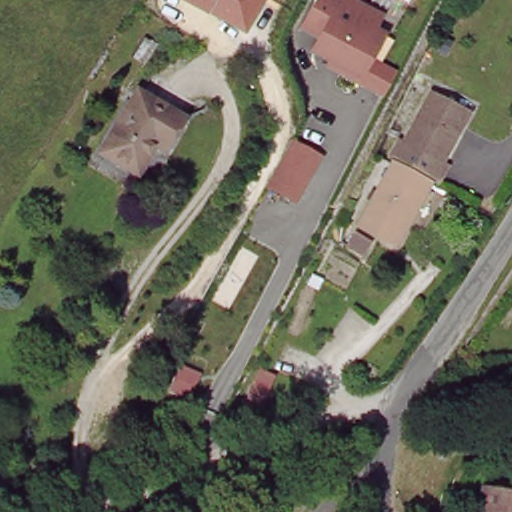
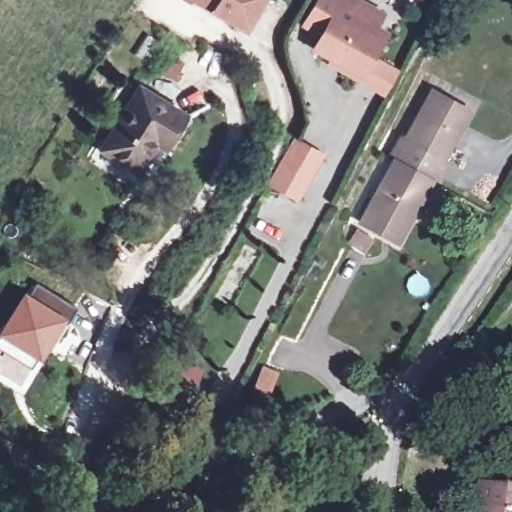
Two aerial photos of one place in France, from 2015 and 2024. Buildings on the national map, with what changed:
unchanged [(182,0),(263,0),(245,34),(182,0)]
unchanged [(364,79),(312,54),(317,39),(300,31),(312,0),(345,0),(393,19),(364,79)]
unchanged [(427,87),(465,107),(440,156),(445,159),(435,177),(389,152),(398,135),(400,136),(427,87)]
unchanged [(157,144),(140,172),(105,152),(141,91),(184,116),(171,137),(165,148),(157,144)]
unchanged [(301,205),(272,191),(297,142),(327,156),(301,205)]
unchanged [(394,241),(355,219),(390,157),(428,177),(394,241)]
new [(0,352),(0,337),(25,297),(27,300),(37,285),(77,310),(67,325),(52,351),(45,347),(32,371),(0,352)]
new [(265,372),(282,380),(277,391),(270,408),(251,400),(259,382),(265,372)]
unchanged [(481,512),(485,486),(512,490),(512,512),(481,512)]

